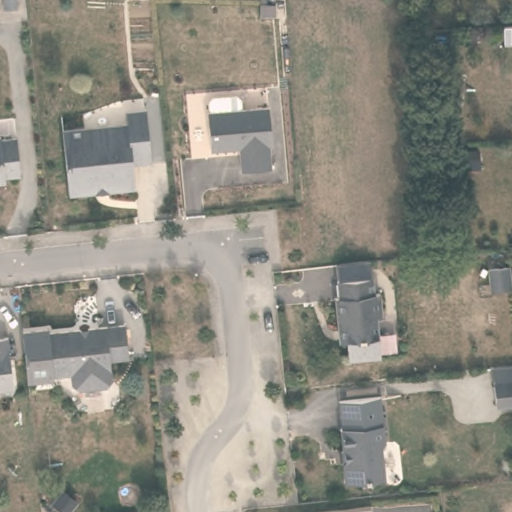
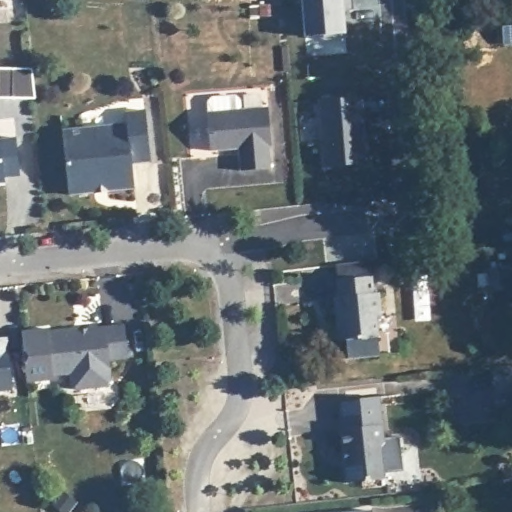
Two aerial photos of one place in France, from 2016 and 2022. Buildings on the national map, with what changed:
new [(301,0),(354,0),(355,10),(343,10),(345,39),(325,40),(323,35),(305,35),(301,0)]
new [(36,100),(0,99),(0,67),(32,67),(36,100)]
new [(366,96),(371,163),(322,165),(318,100),(366,96)]
unchanged [(268,106),(271,145),(268,145),(270,167),(240,170),(239,147),(210,150),(207,111),(268,106)]
unchanged [(128,124),(127,112),(147,111),(151,162),(132,162),(135,188),(108,190),(108,186),(100,186),(95,192),(69,194),(64,130),(128,124)]
unchanged [(2,139),(18,138),(21,175),(6,176),(7,181),(0,182),(0,136),(2,136),(2,139)]
unchanged [(478,150),(480,167),(455,169),(453,151),(478,150)]
unchanged [(495,291),(492,269),(512,267),(512,289),(495,291)]
unchanged [(338,296),(337,280),(372,276),(374,292),(380,292),(382,315),(377,315),(381,355),(349,359),(347,341),(345,341),(344,330),(338,330),(335,296),(338,296)]
unchanged [(126,325),(129,358),(111,360),(112,380),(107,387),(79,390),(72,385),(72,375),(52,376),(47,333),(126,325)]
unchanged [(12,390),(0,391),(0,338),(8,337),(12,390)]
unchanged [(497,407),(494,382),(492,367),(512,365),(512,405),(497,407)]
unchanged [(342,428),(341,400),(381,397),(384,443),(381,447),(383,480),(343,483),(342,463),(345,460),(345,450),(342,450),(340,428),(342,428)]
unchanged [(374,512),(325,512),(373,506),(374,512)]

